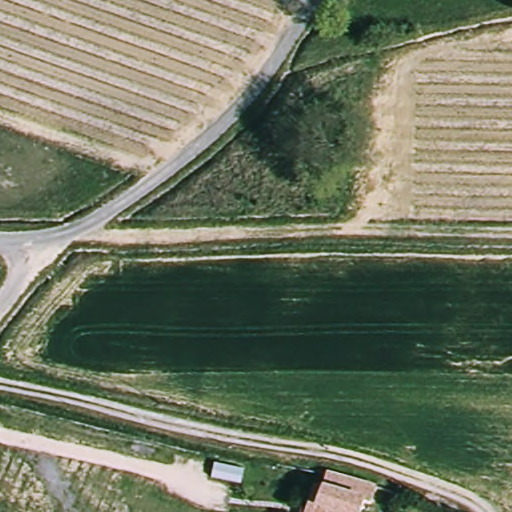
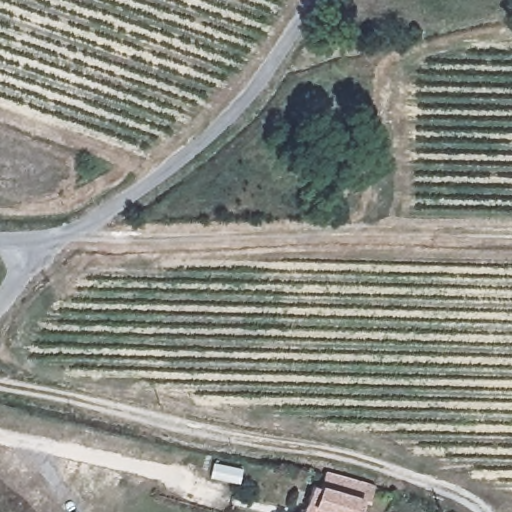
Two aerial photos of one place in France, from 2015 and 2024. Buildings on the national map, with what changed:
unchanged [(344,467),(364,474),(383,481),(377,501),(371,498),(365,512),(309,512),(307,511),(322,476),(329,479),(335,466),(344,467)]

